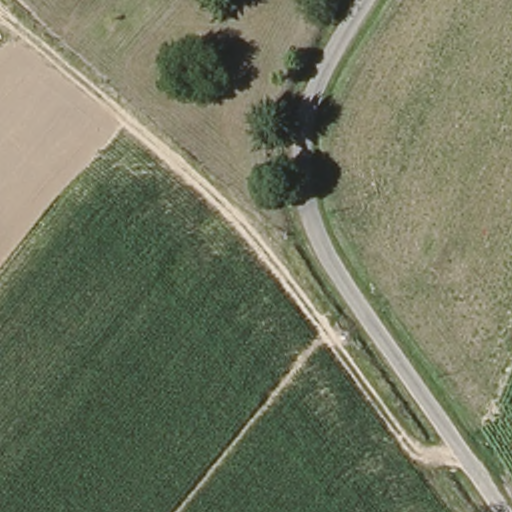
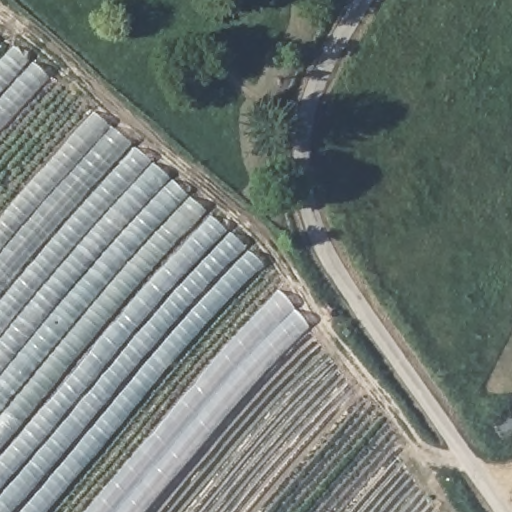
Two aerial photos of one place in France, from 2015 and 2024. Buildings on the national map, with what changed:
demolished [(20,0),(27,0),(24,4),(20,0)]
new [(13,45),(47,77),(0,132),(0,60),(13,45)]
new [(0,512),(0,217),(92,111),(263,264),(48,512),(0,512)]
new [(308,327),(145,512),(84,512),(279,290),(308,327)]

